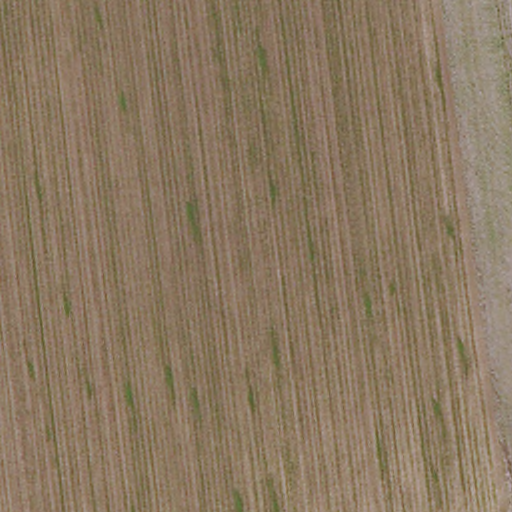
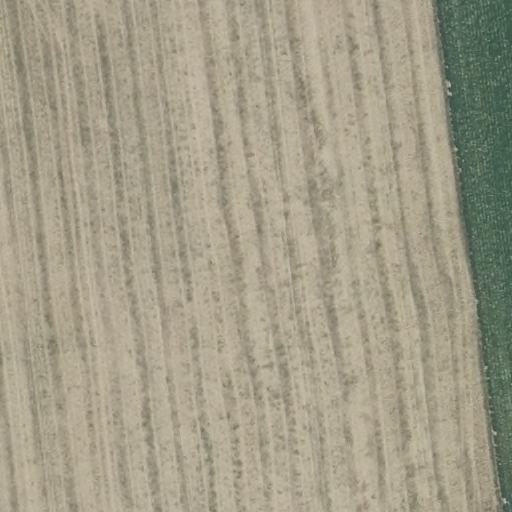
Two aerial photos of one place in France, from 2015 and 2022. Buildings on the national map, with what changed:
[]

